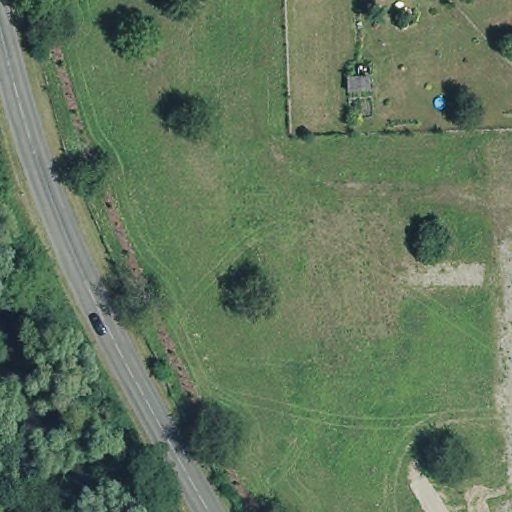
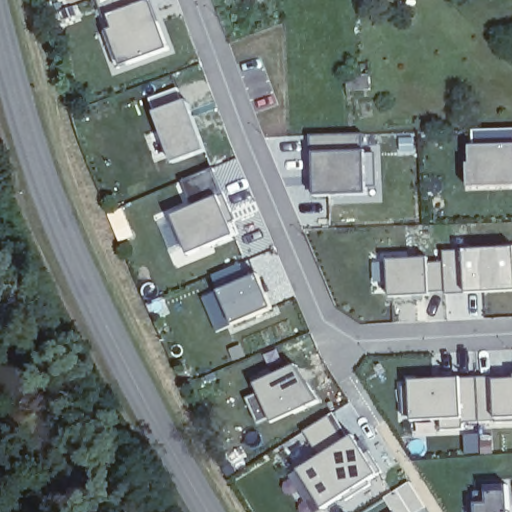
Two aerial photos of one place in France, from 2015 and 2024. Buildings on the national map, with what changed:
new [(175,53),(130,67),(108,0),(155,0),(175,53)]
demolished [(406,86),(384,88),(384,73),(405,72),(406,86)]
new [(178,167),(162,116),(156,99),(181,90),(189,105),(193,103),(215,152),(178,167)]
new [(368,134),(374,195),(317,197),(316,138),(368,134)]
demolished [(334,147),(315,148),(314,137),(334,135),(334,147)]
new [(467,151),(512,148),(512,188),(467,189),(467,151)]
new [(191,211),(180,185),(214,172),(241,236),(192,256),(178,218),(191,211)]
demolished [(370,327),(329,329),(324,225),(365,223),(370,327)]
new [(440,254),(512,252),(512,293),(387,298),(386,264),(439,264),(440,254)]
new [(282,311),(238,329),(222,293),(268,278),(282,311)]
new [(300,386),(306,382),(315,403),(293,412),(289,408),(257,424),(246,399),(257,394),(252,377),(289,361),(300,386)]
new [(512,423),(463,423),(464,432),(440,432),(440,421),(409,424),(406,382),(512,379),(512,423)]
demolished [(305,431),(284,433),(283,421),(305,419),(305,431)]
new [(372,478),(318,512),(313,512),(292,476),(348,439),(372,478)]
new [(410,482),(426,508),(419,512),(392,512),(384,499),(410,482)]
new [(474,492),(488,491),(488,488),(510,487),(511,512),(477,512),(476,503),(474,492)]

